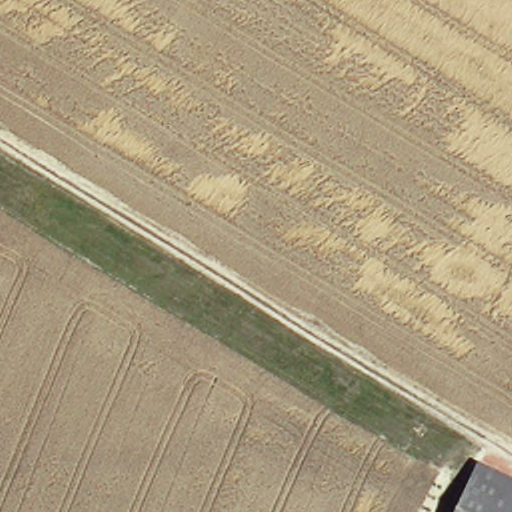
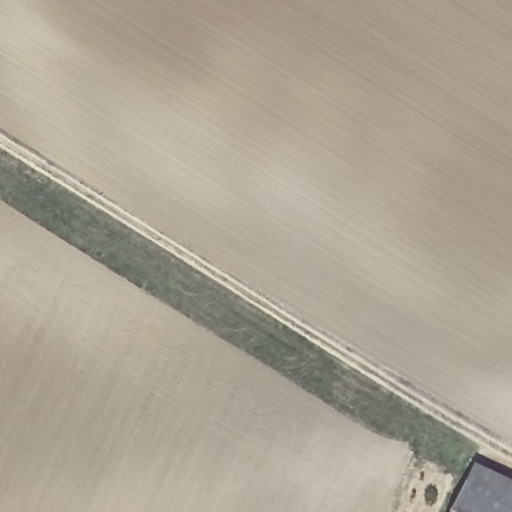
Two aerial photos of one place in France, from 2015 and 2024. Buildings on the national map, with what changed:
unchanged [(483,470),(512,483),(512,512),(453,512),(475,467),(483,470)]

